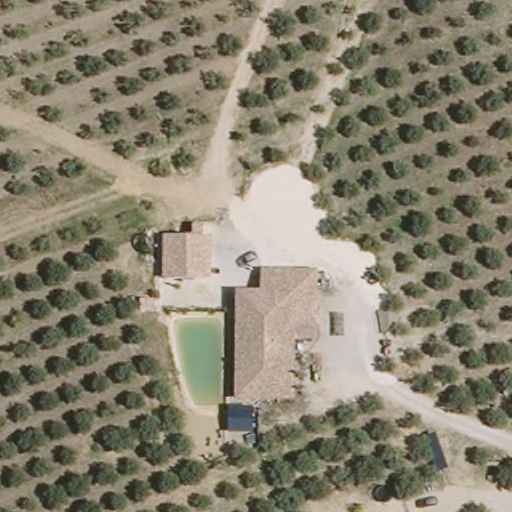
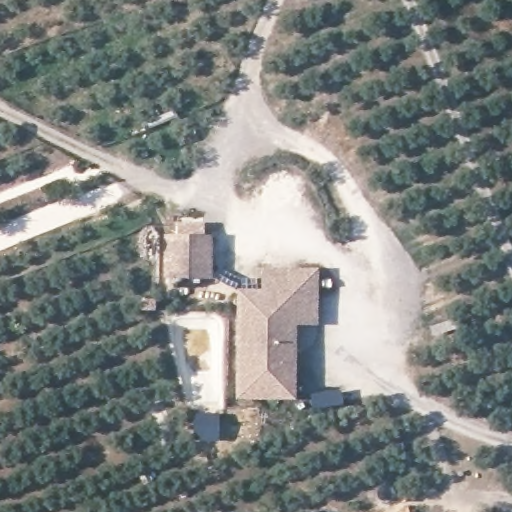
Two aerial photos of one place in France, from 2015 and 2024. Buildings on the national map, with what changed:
unchanged [(215,239),(215,279),(163,278),(163,236),(215,239)]
unchanged [(316,271),(316,326),(293,327),(294,402),(236,403),(236,293),(260,293),(259,270),(316,271)]

